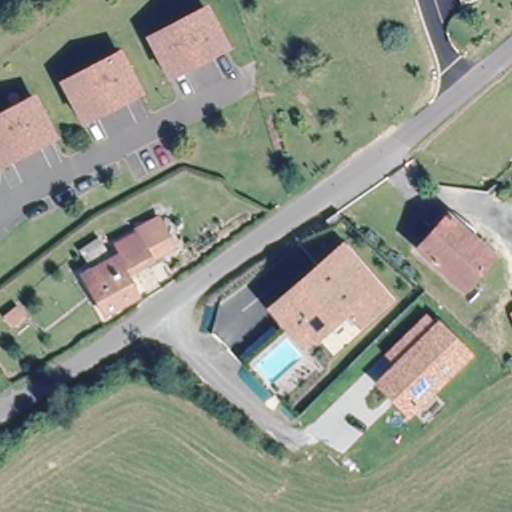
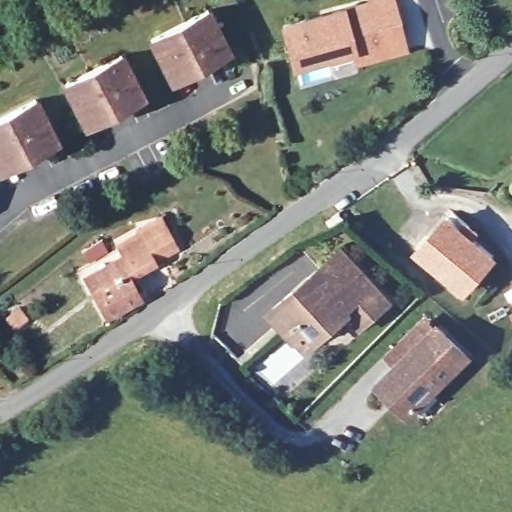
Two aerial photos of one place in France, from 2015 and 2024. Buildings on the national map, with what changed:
new [(350,54),(292,69),(281,22),(343,6),(362,0),(395,0),(408,50),(354,65),(350,54)]
unchanged [(221,50),(164,79),(144,40),(202,11),(221,50)]
unchanged [(77,124),(57,84),(115,55),(135,95),(77,124)]
unchanged [(0,113),(28,99),(49,138),(0,163),(0,113)]
unchanged [(496,255),(465,291),(420,251),(455,211),(478,232),(474,236),(490,250),(496,255)]
unchanged [(136,228),(158,223),(158,225),(173,255),(126,280),(137,302),(106,318),(86,280),(124,260),(118,248),(141,236),(140,235),(136,228)]
unchanged [(294,344),(269,317),(339,253),(386,304),(357,330),(343,314),(314,341),(301,352),(294,344)]
unchanged [(510,314),(512,313),(512,319),(510,314)]
unchanged [(393,394),(381,381),(400,362),(391,352),(424,319),(434,329),(438,325),(468,355),(415,408),(411,412),(393,394)]

